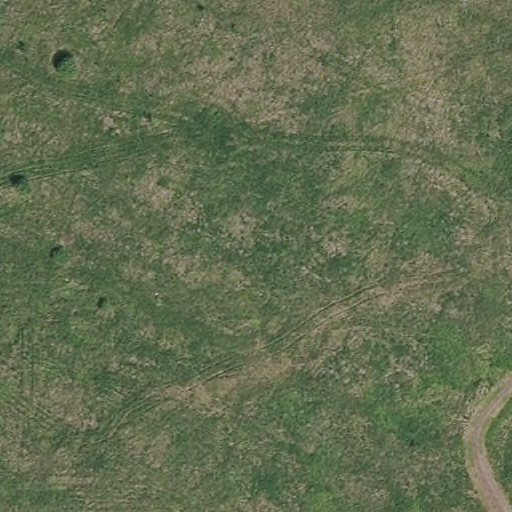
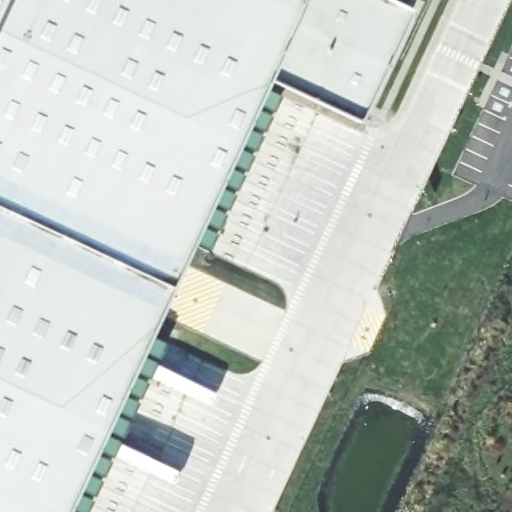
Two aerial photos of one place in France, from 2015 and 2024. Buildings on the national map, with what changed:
new [(361,116),(270,71),(190,245),(64,512),(0,512),(0,0),(402,0),(413,5),(361,116)]

